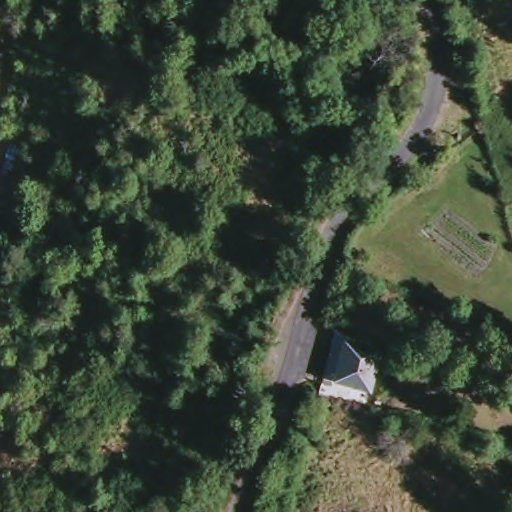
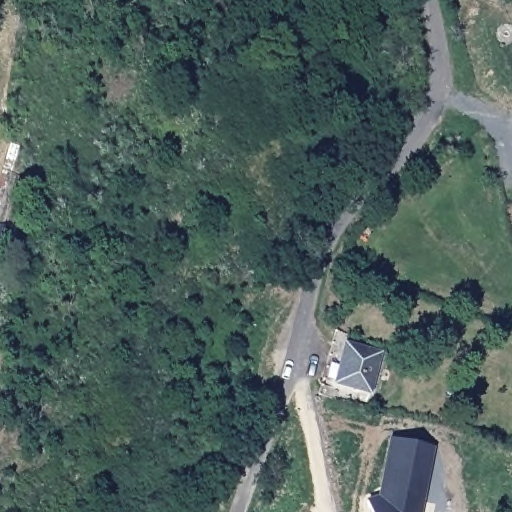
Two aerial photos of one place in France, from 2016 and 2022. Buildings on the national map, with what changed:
unchanged [(5,247),(0,247),(0,225),(7,225),(5,247)]
unchanged [(371,395),(337,386),(347,346),(380,356),(371,395)]
new [(387,438),(434,447),(422,512),(369,512),(365,501),(377,497),(387,438)]

